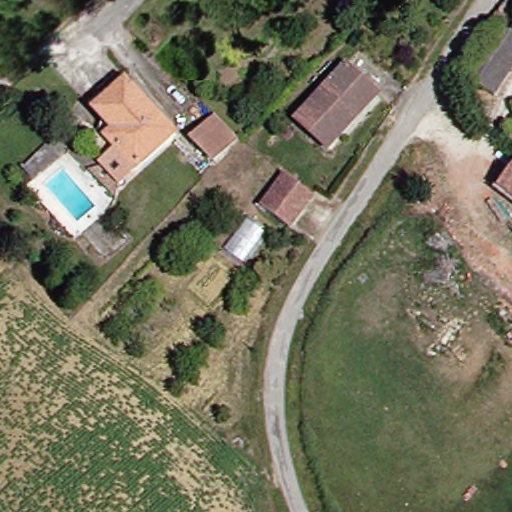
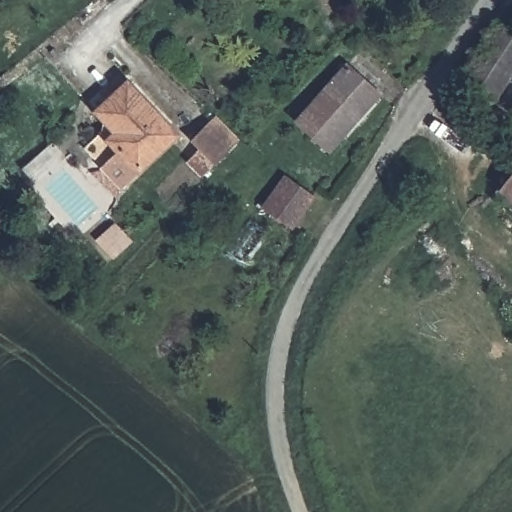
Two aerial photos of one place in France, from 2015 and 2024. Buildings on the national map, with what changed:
unchanged [(500,24),(512,8),(512,31),(503,26),(500,24)]
unchanged [(512,31),(512,93),(507,99),(472,76),(503,26),(512,31)]
unchanged [(107,107),(117,98),(109,88),(131,69),(184,133),(167,147),(142,168),(127,149),(116,135),(124,127),(107,107)]
unchanged [(390,98),(344,149),(313,119),(364,69),(390,98)]
unchanged [(225,165),(200,140),(222,115),(248,141),(225,165)]
unchanged [(320,189),(319,210),(303,229),(274,205),(299,173),(320,189)]
unchanged [(512,192),(505,187),(512,178),(512,192)]

